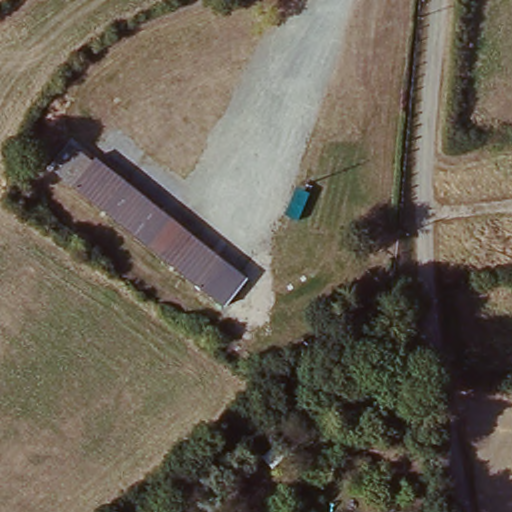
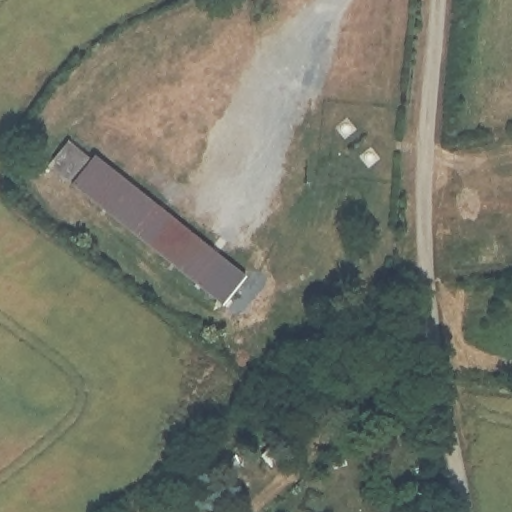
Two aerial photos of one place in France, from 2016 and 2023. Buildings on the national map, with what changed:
unchanged [(71,147),(90,165),(97,159),(247,276),(227,302),(46,173),(71,147)]

